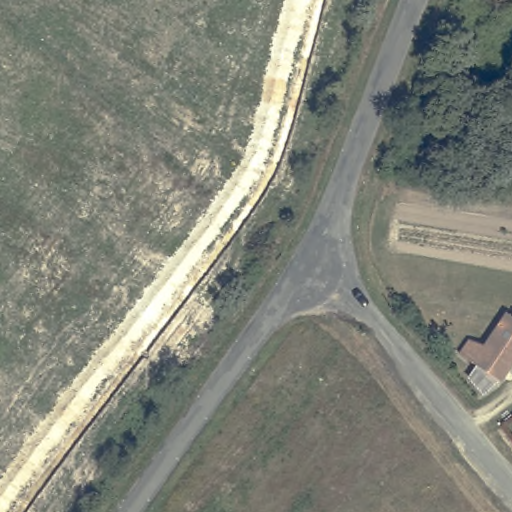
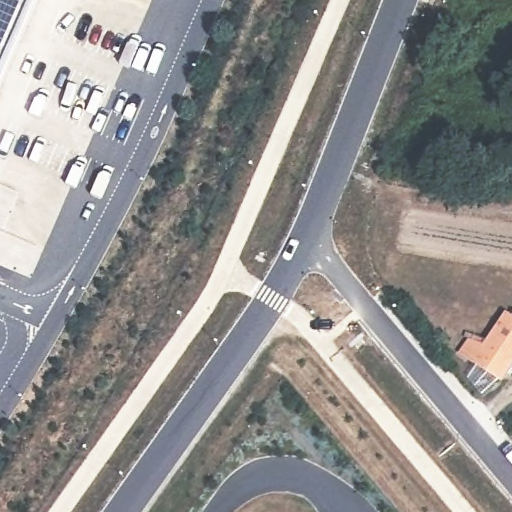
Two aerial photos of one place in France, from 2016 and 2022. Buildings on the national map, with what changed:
new [(37,0),(0,86),(0,0),(37,0)]
unchanged [(510,303),(512,305),(512,361),(506,371),(464,345),(473,330),(486,338),(510,303)]

